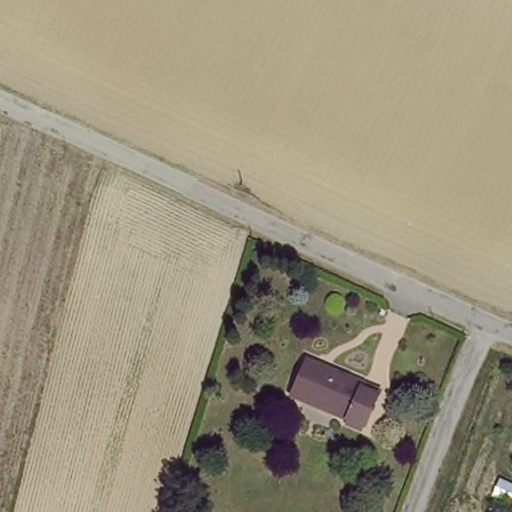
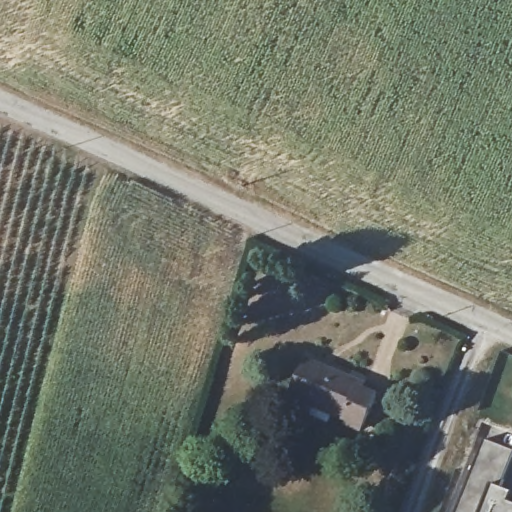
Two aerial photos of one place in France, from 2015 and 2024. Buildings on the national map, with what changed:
unchanged [(293,392),(306,355),(364,380),(384,389),(381,396),(370,424),(293,392)]
new [(512,449),(512,458),(500,487),(512,491),(512,498),(510,502),(512,503),(512,512),(455,512),(483,438),(512,449)]

